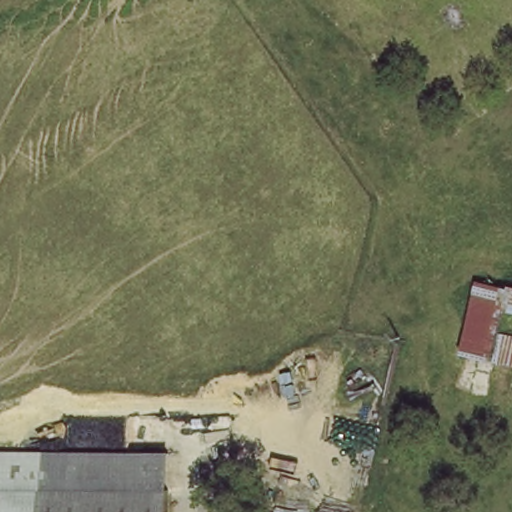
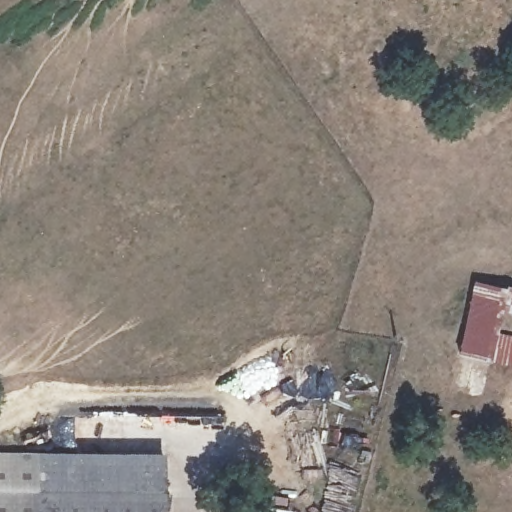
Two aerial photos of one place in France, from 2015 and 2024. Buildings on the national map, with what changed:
unchanged [(494,338),(512,342),(512,368),(489,361),(461,356),(476,285),(512,292),(512,319),(499,316),(494,338)]
unchanged [(164,454),(164,512),(0,512),(0,453),(164,454)]

